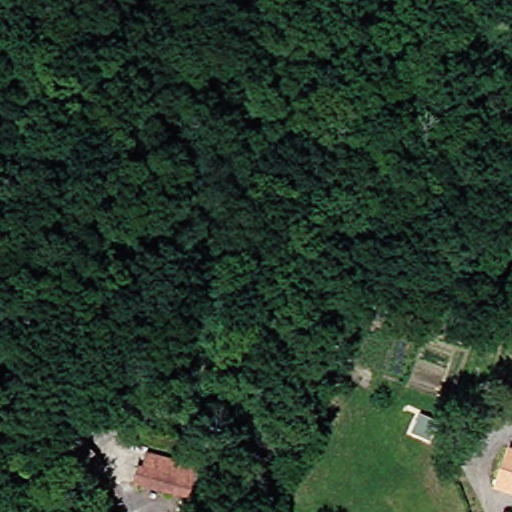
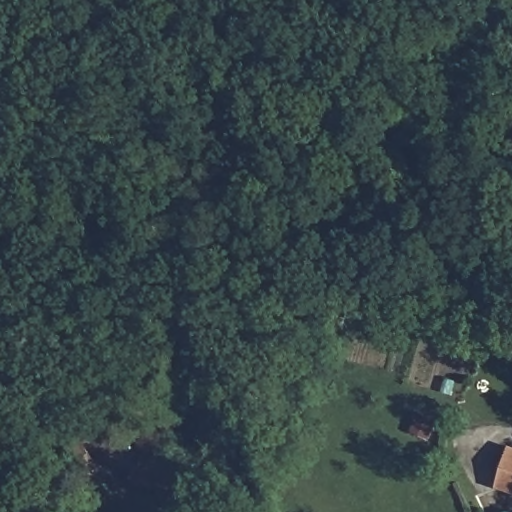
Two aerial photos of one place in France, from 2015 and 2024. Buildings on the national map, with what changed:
unchanged [(505,450),(512,453),(512,497),(491,489),(505,450)]
unchanged [(176,496),(130,483),(135,467),(138,454),(159,460),(185,467),(176,496)]

